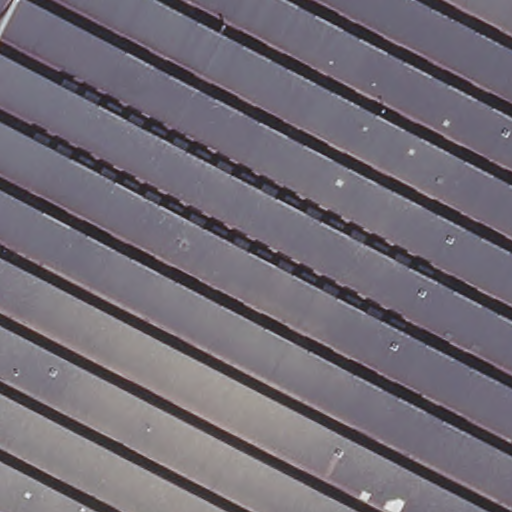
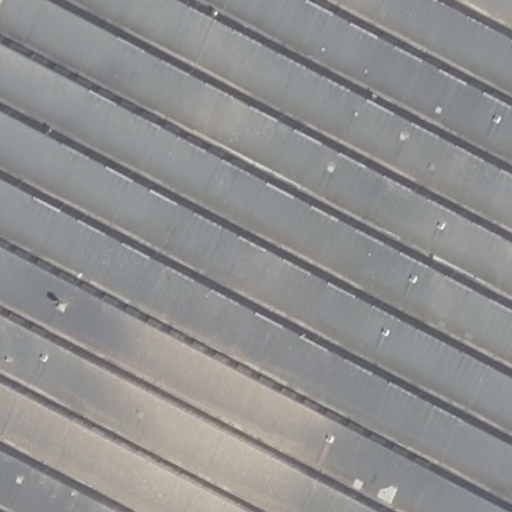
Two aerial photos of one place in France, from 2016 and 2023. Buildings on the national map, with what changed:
unchanged [(0,0),(512,0),(512,512),(0,512),(0,0)]

